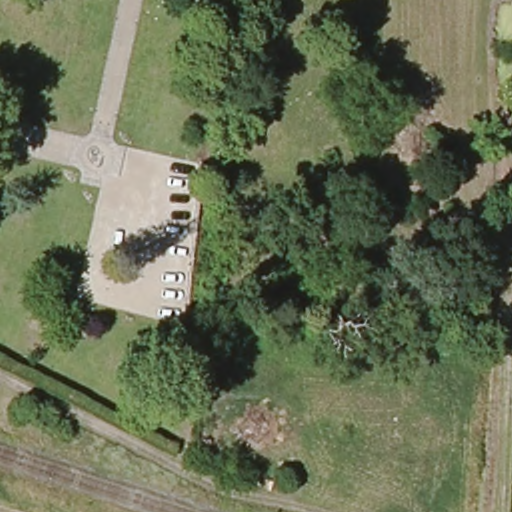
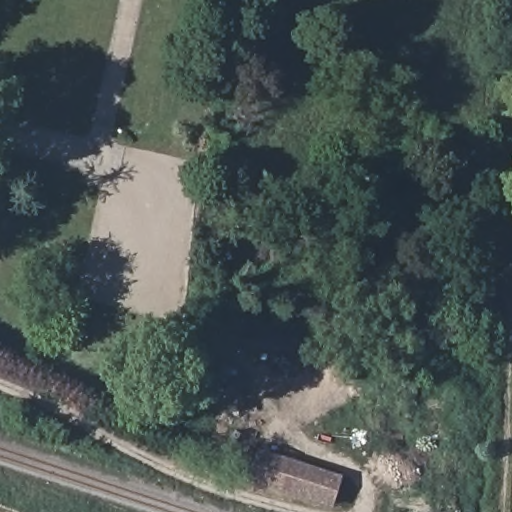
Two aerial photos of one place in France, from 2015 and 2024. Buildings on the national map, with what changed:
new [(246,480),(257,448),(343,476),(332,508),(246,480)]

